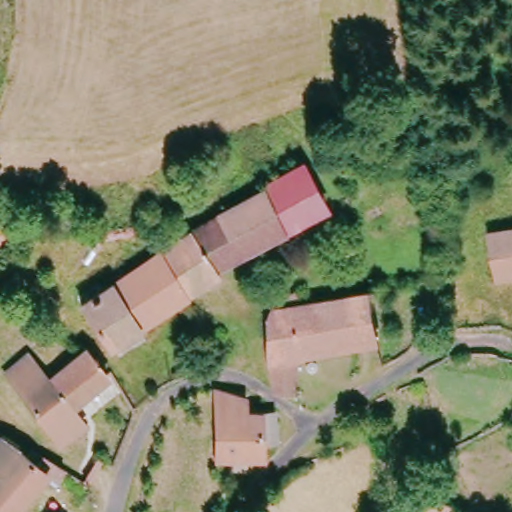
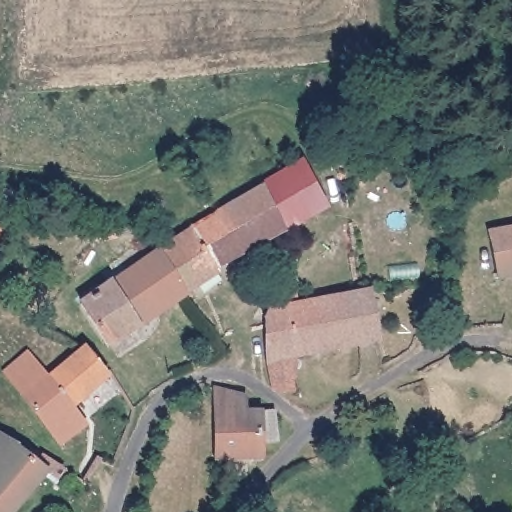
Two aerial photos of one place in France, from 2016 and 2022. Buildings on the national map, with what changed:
unchanged [(318,207),(213,271),(213,275),(191,289),(198,298),(188,305),(181,296),(158,262),(153,254),(135,231),(150,220),(160,228),(176,217),(171,212),(191,199),(205,217),(296,163),(318,207)]
unchanged [(490,276),(483,232),(484,232),(512,225),(512,271),(490,276)]
unchanged [(153,254),(158,262),(181,296),(104,347),(97,338),(75,302),(153,254)]
unchanged [(280,393),(274,389),(269,368),(263,353),(263,342),(263,333),(269,316),(268,305),(295,298),(296,310),(336,301),(356,298),(367,297),(375,344),(290,362),(290,363),(291,394),(290,393),(280,393)]
unchanged [(41,428),(16,397),(0,377),(0,373),(19,357),(38,380),(40,382),(77,353),(89,367),(103,382),(65,411),(78,425),(55,443),(41,428)]
unchanged [(268,442),(266,448),(251,456),(251,461),(206,464),(201,392),(235,400),(236,416),(263,412),(268,442)]
unchanged [(11,453),(30,463),(43,472),(36,480),(8,512),(0,512),(0,435),(13,443),(11,453)]

